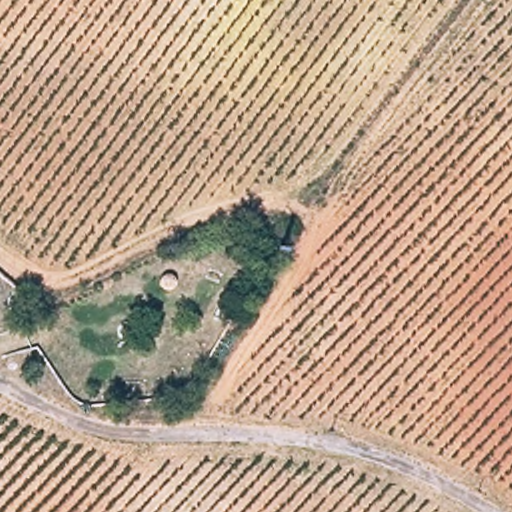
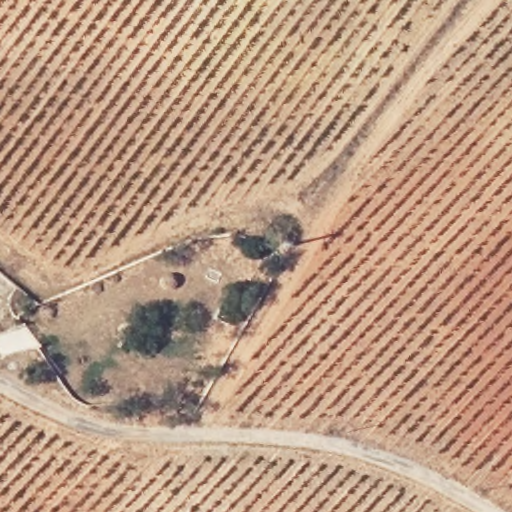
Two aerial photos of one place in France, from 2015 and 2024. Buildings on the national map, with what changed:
[]

